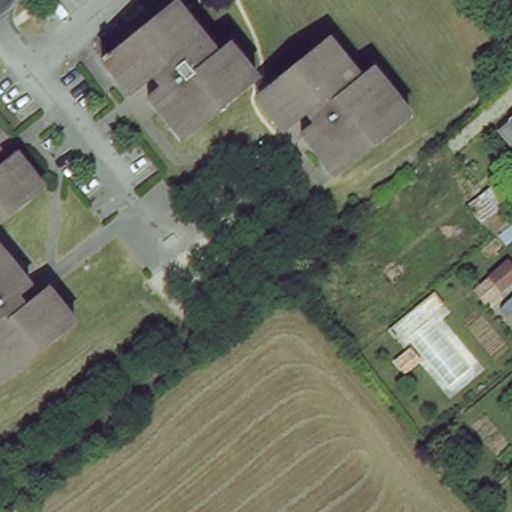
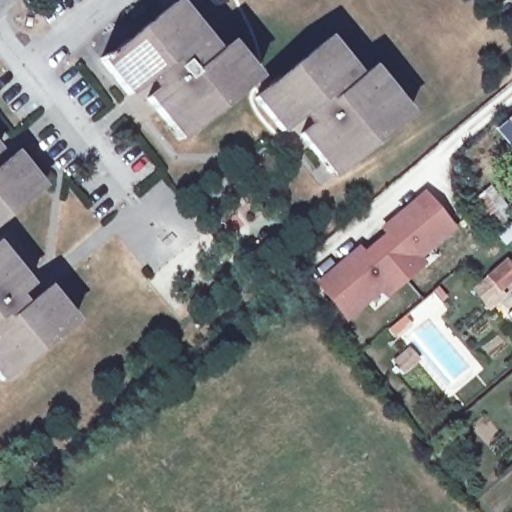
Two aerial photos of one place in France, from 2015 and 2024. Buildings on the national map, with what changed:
unchanged [(170,7),(215,56),(227,46),(256,77),(185,143),(151,106),(163,94),(153,82),(130,102),(100,71),(170,7)]
unchanged [(321,41),(355,78),(368,67),(408,111),(337,176),(301,137),(315,125),(303,114),(282,133),(253,102),(321,41)]
unchanged [(507,107),(512,114),(512,155),(487,126),(507,107)]
unchanged [(40,187),(0,223),(0,168),(12,157),(40,187)]
unchanged [(485,246),(493,237),(463,207),(490,186),(512,212),(512,239),(493,254),(485,246)]
new [(420,258),(427,265),(385,298),(381,292),(346,322),(313,282),(359,245),(363,251),(384,233),(380,229),(422,191),(457,231),(420,258)]
unchanged [(10,300),(20,311),(42,291),(70,322),(2,384),(0,382),(0,264),(22,288),(10,300)]
unchanged [(507,264),(512,270),(512,282),(502,291),(490,279),(507,264)]

